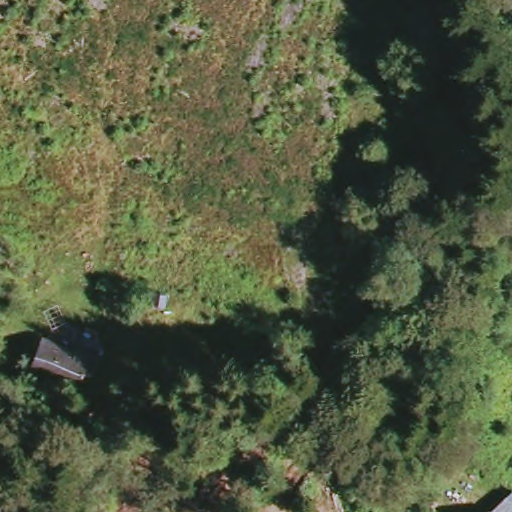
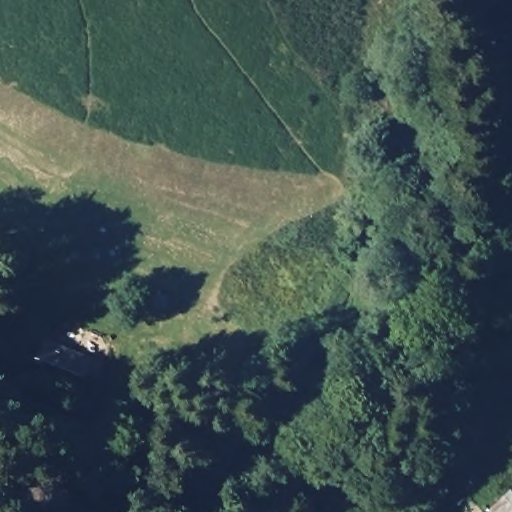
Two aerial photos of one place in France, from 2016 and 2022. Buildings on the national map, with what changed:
unchanged [(99,368),(82,402),(36,381),(51,347),(99,368)]
unchanged [(485,512),(512,488),(512,512),(485,512)]

